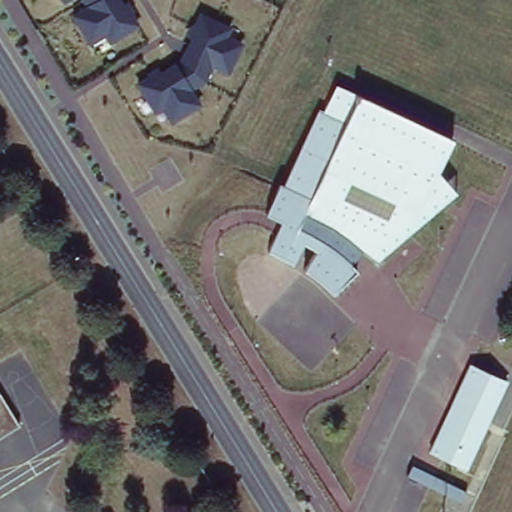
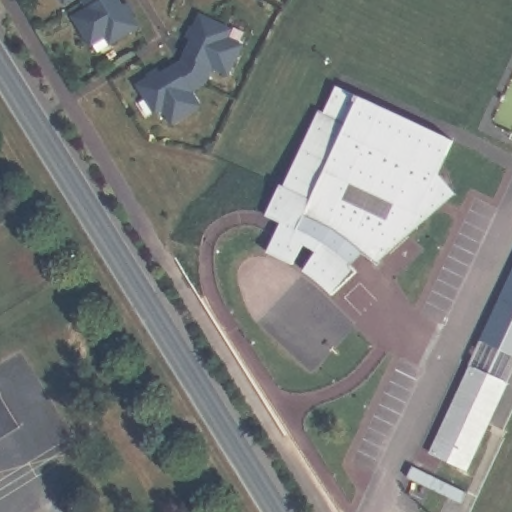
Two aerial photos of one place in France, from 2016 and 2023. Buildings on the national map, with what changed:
unchanged [(61,0),(64,0),(62,1),(61,0)]
unchanged [(124,0),(127,0),(136,15),(135,18),(140,27),(108,45),(102,37),(88,45),(71,18),(85,9),(81,0),(120,0),(120,1),(124,0)]
unchanged [(177,62),(191,38),(188,36),(199,15),(233,31),(231,36),(246,45),(231,75),(214,68),(208,84),(195,95),(202,105),(170,123),(160,110),(155,114),(133,85),(177,62)]
unchanged [(375,264),(358,249),(351,259),(359,266),(330,292),(309,273),(291,261),(265,252),(276,219),(259,209),(271,176),(279,178),(333,78),(456,137),(440,169),(454,189),(375,264)]
new [(512,369),(504,387),(470,367),(512,275),(512,369)]
unchanged [(470,367),(504,387),(460,473),(428,453),(470,367)]
unchanged [(18,433),(0,443),(0,400),(18,433)]

